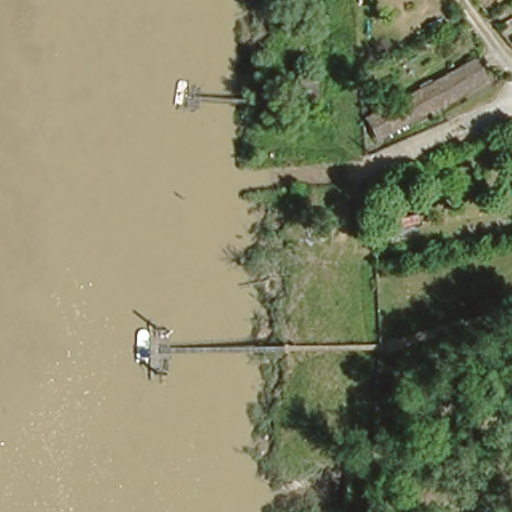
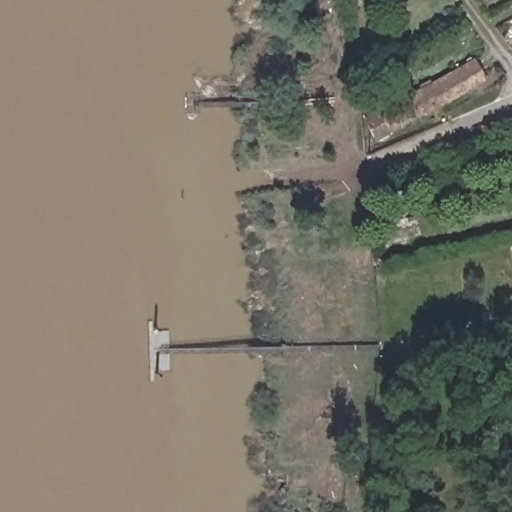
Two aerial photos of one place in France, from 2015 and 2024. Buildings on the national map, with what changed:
unchanged [(506,20),(512,16),(512,31),(506,20)]
unchanged [(378,141),(368,121),(476,61),(487,79),(378,141)]

